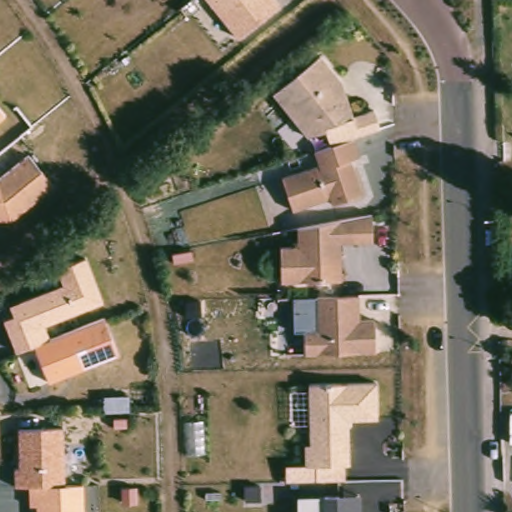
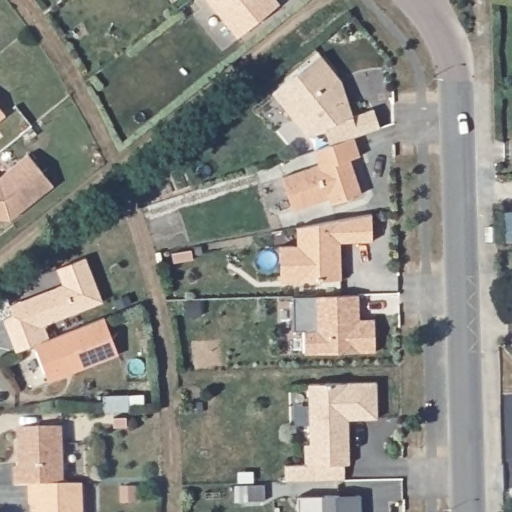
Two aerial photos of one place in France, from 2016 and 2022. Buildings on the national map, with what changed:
unchanged [(281,9),(235,45),(197,0),(273,0),(281,9)]
unchanged [(317,171),(311,155),(329,146),(325,135),(303,143),(271,97),(319,59),(341,86),(355,121),(372,116),(378,134),(353,141),(361,167),(352,170),(361,200),(331,208),(329,204),(290,216),(280,183),(317,171)]
unchanged [(0,123),(0,116),(3,120),(0,123)]
unchanged [(56,190),(11,225),(0,225),(0,178),(29,155),(56,190)]
unchanged [(296,250),(296,232),(371,220),(372,245),(338,247),(340,285),(280,287),(278,251),(296,250)]
unchanged [(84,261),(103,311),(45,331),(49,342),(106,324),(120,359),(43,385),(31,349),(14,355),(4,325),(14,321),(9,307),(61,289),(55,273),(84,261)]
unchanged [(314,335),(313,300),(359,297),(360,322),(376,323),(377,355),(303,357),(302,337),(314,335)]
unchanged [(377,420),(349,420),(349,466),(343,466),(344,479),(287,480),(286,465),(306,464),(305,443),(309,443),(308,424),(293,425),(292,390),(310,390),(309,382),(377,382),(377,420)]
unchanged [(63,486),(82,488),(83,512),(36,512),(36,511),(30,510),(29,490),(13,490),(12,471),(19,471),(16,431),(63,431),(63,486)]
unchanged [(299,512),(298,497),(362,495),(362,512),(299,512)]

